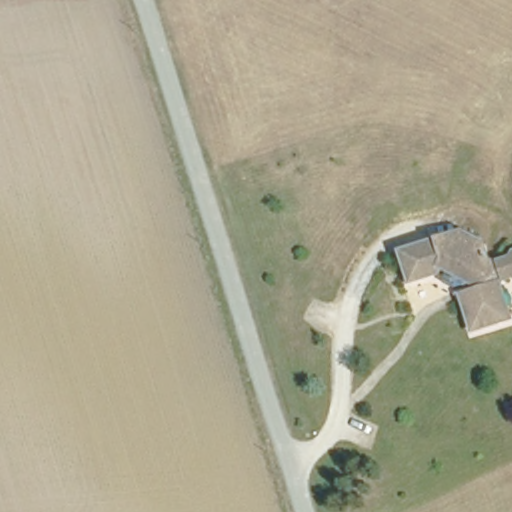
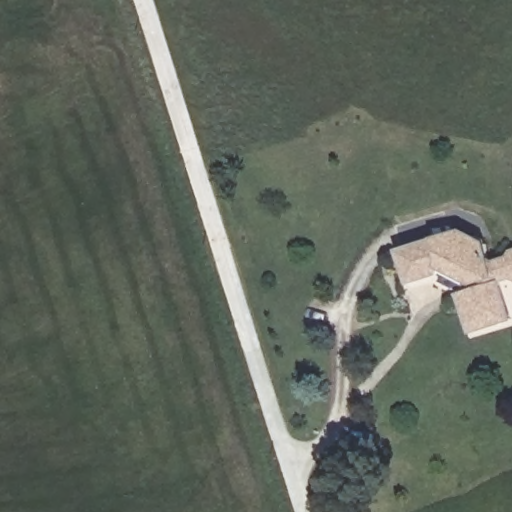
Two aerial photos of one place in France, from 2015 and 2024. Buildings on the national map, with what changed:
unchanged [(489,259),(505,252),(507,245),(512,243),(512,272),(511,271),(509,270),(501,273),(498,274),(496,281),(510,313),(500,317),(489,321),(479,326),(471,329),(470,326),(466,315),(461,305),(457,294),(470,288),(467,280),(462,282),(452,286),(450,287),(447,286),(451,274),(443,271),(440,278),(438,279),(427,284),(412,290),(399,257),(461,232),(475,238),(482,255),(489,259)]

